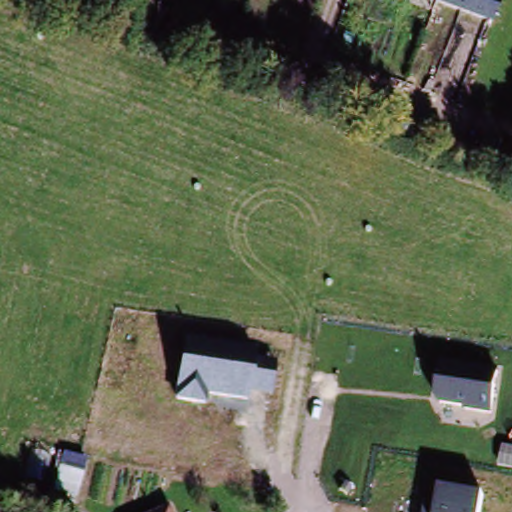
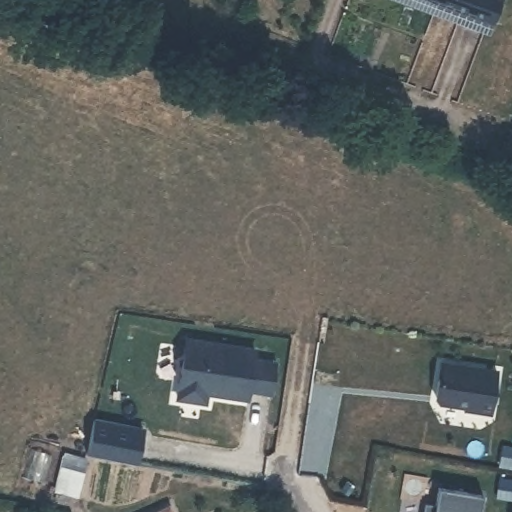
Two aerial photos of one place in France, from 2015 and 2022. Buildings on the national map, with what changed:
unchanged [(445,0),(500,0),(492,19),(445,0)]
unchanged [(272,395),(250,391),(248,399),(210,393),(208,402),(174,397),(184,335),(258,347),(256,357),(277,360),(272,395)]
unchanged [(463,409),(463,405),(434,401),(441,360),(499,368),(492,413),(463,409)]
new [(150,434),(143,469),(92,459),(98,424),(150,434)]
unchanged [(54,492),(65,456),(86,462),(75,498),(54,492)]
unchanged [(478,512),(422,512),(424,500),(436,503),(439,485),(482,491),(478,512)]
unchanged [(171,512),(159,512),(169,507),(171,512)]

